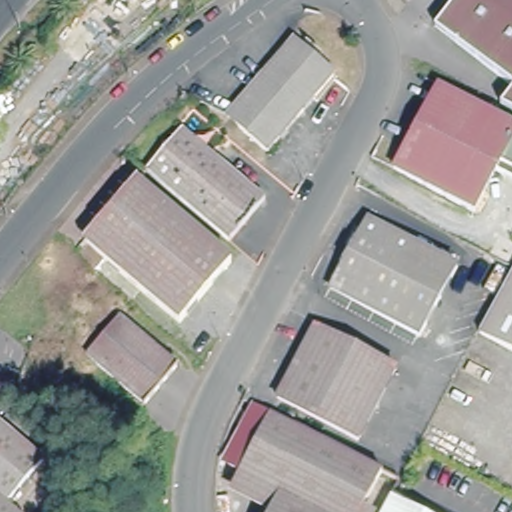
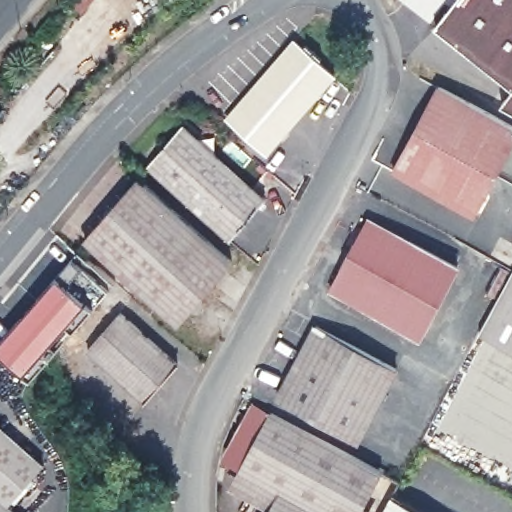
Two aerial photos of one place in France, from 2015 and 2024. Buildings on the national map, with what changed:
unchanged [(452,5),(456,0),(512,0),(512,87),(435,25),(452,5)]
unchanged [(338,69),(274,145),(232,112),(297,34),(338,69)]
unchanged [(479,212),(398,168),(443,83),(512,120),(512,176),(502,170),(479,212)]
unchanged [(512,91),(512,114),(499,106),(512,91)]
unchanged [(151,162),(187,122),(272,193),(236,234),(151,162)]
unchanged [(234,254),(184,313),(88,232),(141,174),(234,254)]
unchanged [(459,264),(422,332),(332,282),(370,216),(459,264)]
new [(72,256),(105,286),(101,290),(84,282),(75,277),(69,282),(88,299),(53,343),(58,347),(31,380),(0,354),(0,340),(72,256)]
unchanged [(512,270),(512,345),(481,328),(512,270)]
unchanged [(180,360),(149,397),(91,348),(123,311),(180,360)]
unchanged [(400,366),(361,438),(281,394),(320,323),(400,366)]
unchanged [(384,469),(360,512),(266,512),(280,487),(243,466),(274,407),(384,469)]
unchanged [(44,457),(10,501),(24,512),(0,512),(0,424),(44,457)]
unchanged [(393,495),(424,512),(383,512),(393,495)]

